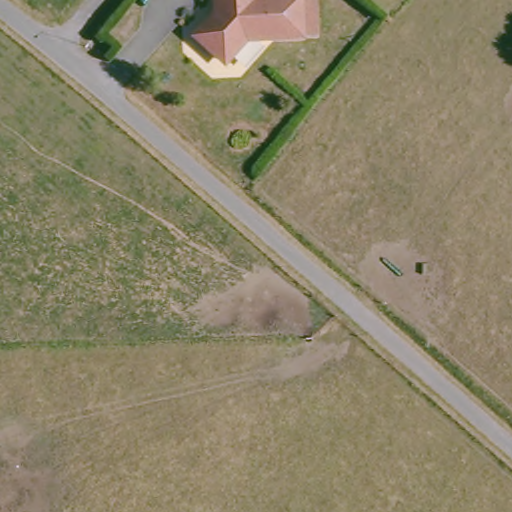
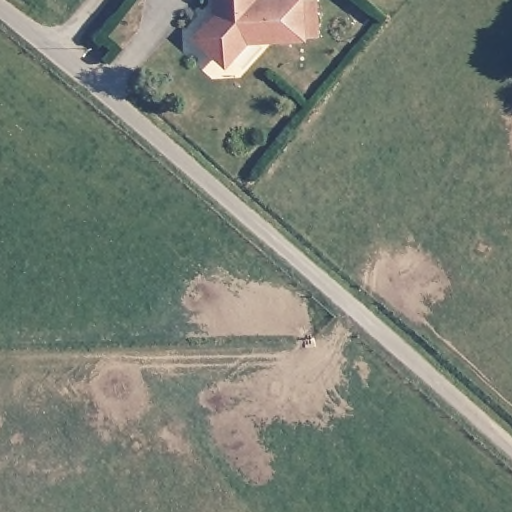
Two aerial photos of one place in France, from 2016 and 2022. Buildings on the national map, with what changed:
unchanged [(256,44),(250,39),(233,61),(221,63),(208,52),(208,40),(226,19),(220,14),(217,0),(263,0),(264,2),(307,5),(306,45),(256,44)]

